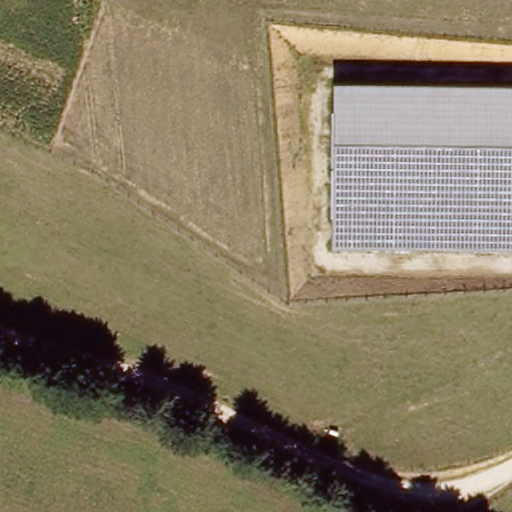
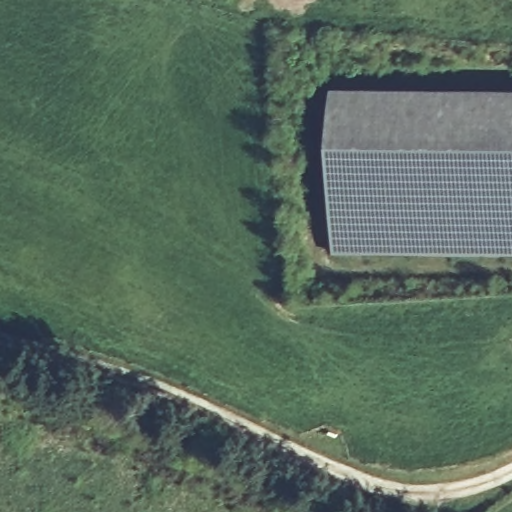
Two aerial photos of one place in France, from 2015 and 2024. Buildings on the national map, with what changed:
unchanged [(512,255),(335,252),(335,89),(512,90),(512,255)]

